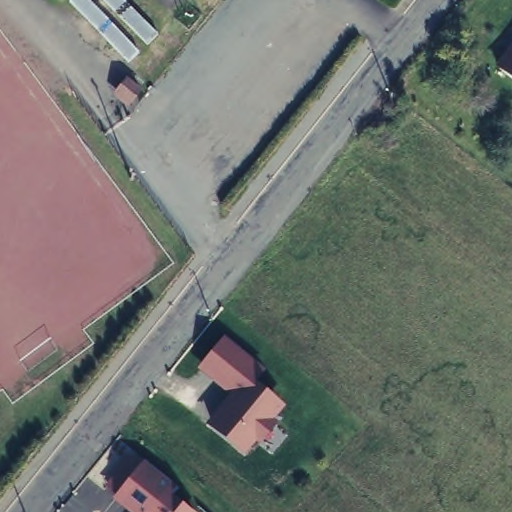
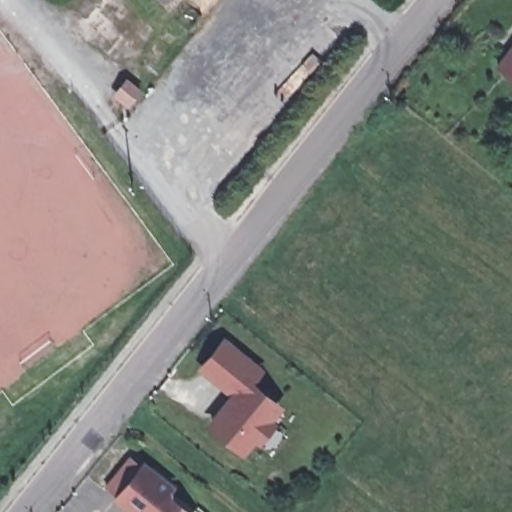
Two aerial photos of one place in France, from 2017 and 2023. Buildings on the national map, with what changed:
unchanged [(494,65),(512,43),(512,78),(494,65)]
unchanged [(128,82),(141,92),(130,106),(116,95),(128,82)]
unchanged [(274,421),(278,425),(259,447),(255,444),(246,456),(203,423),(228,393),(197,367),(223,336),(264,371),(254,383),(284,406),(274,421)]
unchanged [(144,460),(175,485),(173,495),(192,512),(127,512),(113,499),(144,460)]

